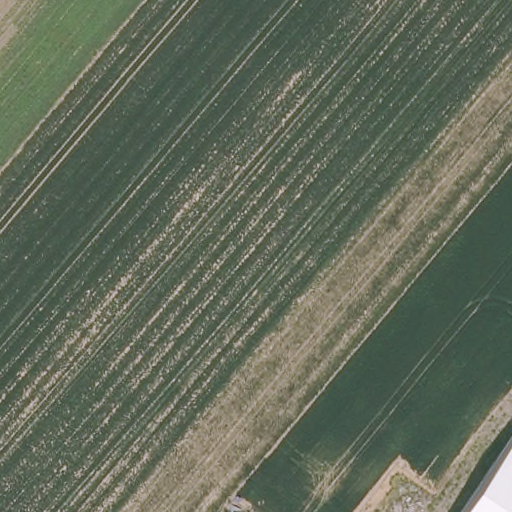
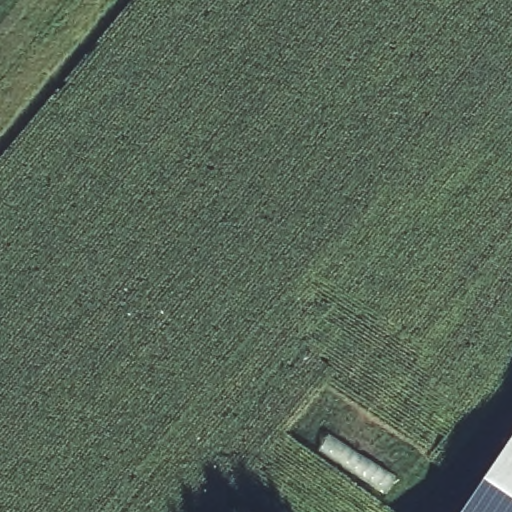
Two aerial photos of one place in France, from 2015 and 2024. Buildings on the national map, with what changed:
unchanged [(512,512),(463,512),(512,438),(512,512)]

